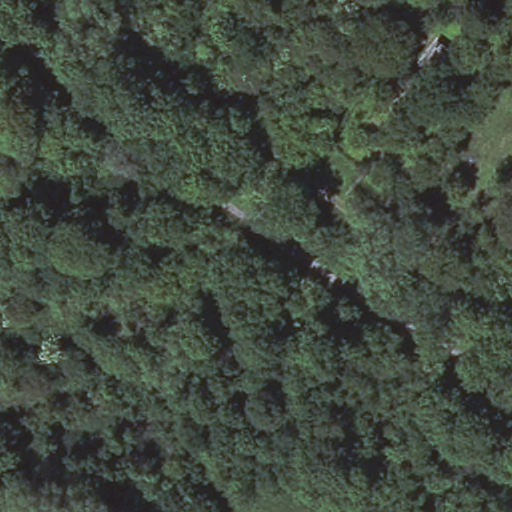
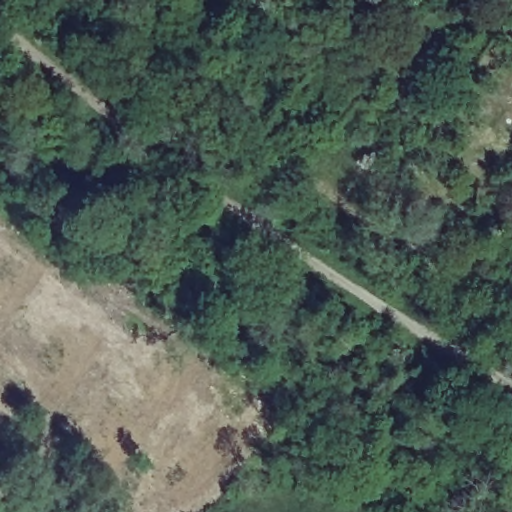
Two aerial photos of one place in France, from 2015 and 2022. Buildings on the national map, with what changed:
unchanged [(441,79),(418,61),(426,51),(429,54),(440,40),(457,54),(447,67),(449,69),(441,79)]

